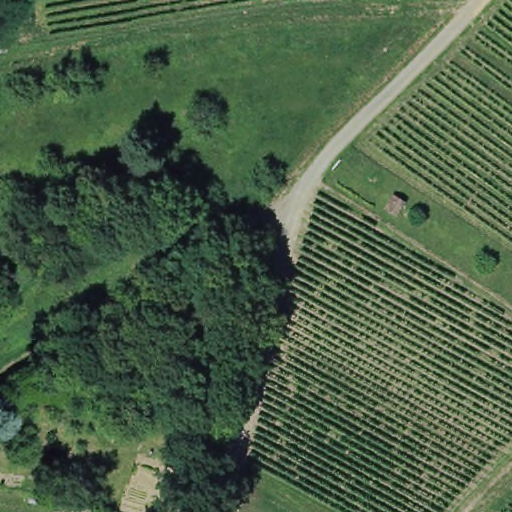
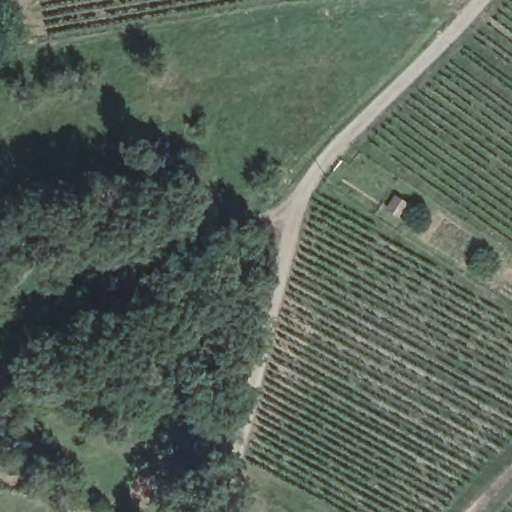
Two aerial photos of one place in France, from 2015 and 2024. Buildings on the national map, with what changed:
unchanged [(405,201),(397,213),(387,207),(395,195),(405,201)]

